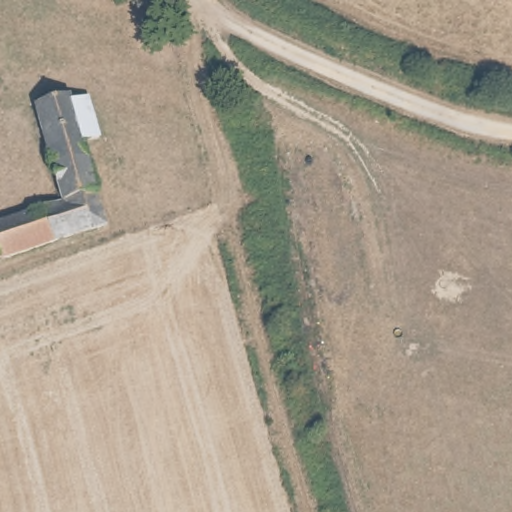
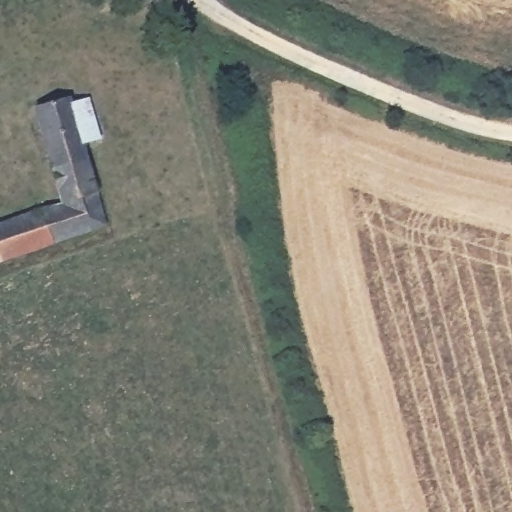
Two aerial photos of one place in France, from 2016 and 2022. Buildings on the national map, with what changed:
unchanged [(102,226),(0,259),(0,222),(65,200),(36,106),(70,97),(71,104),(90,100),(100,137),(82,142),(105,225),(102,226)]

